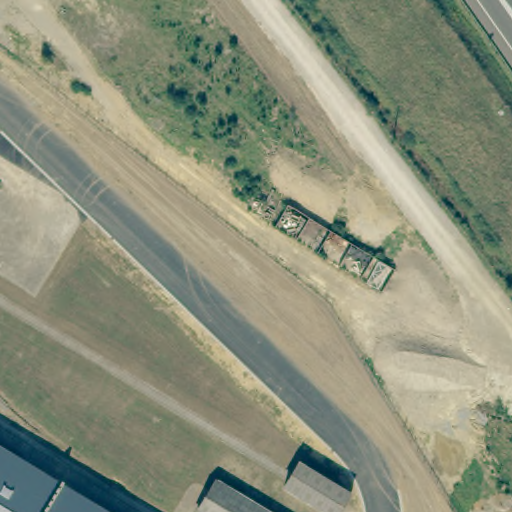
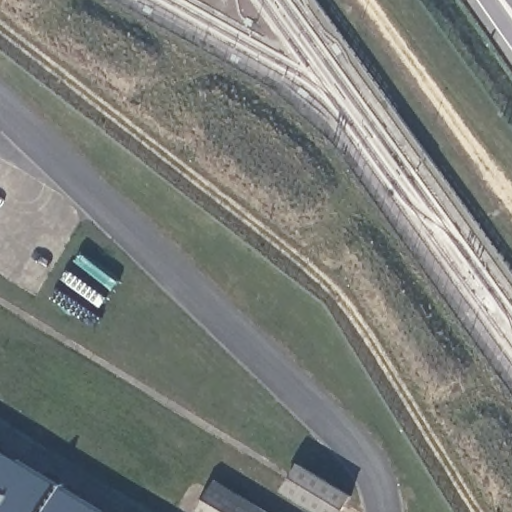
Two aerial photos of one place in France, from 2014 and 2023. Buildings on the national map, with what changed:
unchanged [(110,512),(0,512),(0,445),(110,512)]
unchanged [(352,493),(341,512),(324,512),(285,488),(300,462),(352,493)]
unchanged [(259,512),(200,512),(216,486),(259,512)]

